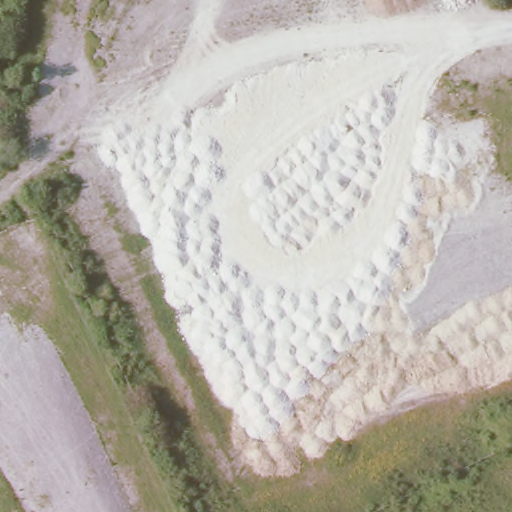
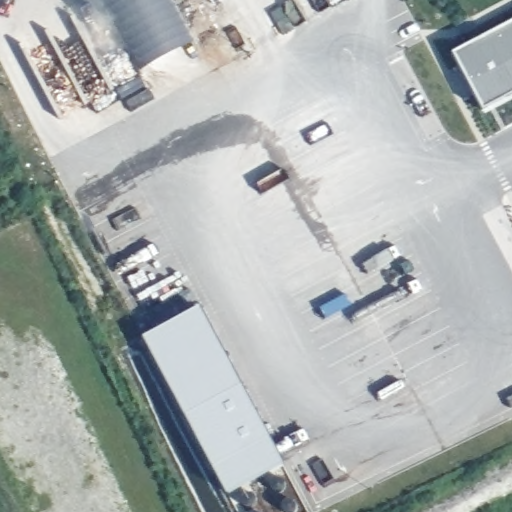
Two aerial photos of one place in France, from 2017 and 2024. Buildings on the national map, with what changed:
new [(190,44),(140,72),(100,3),(106,0),(167,0),(190,44)]
new [(485,110),(455,53),(512,23),(512,96),(485,110)]
new [(143,336),(200,306),(284,464),(227,495),(143,336)]

